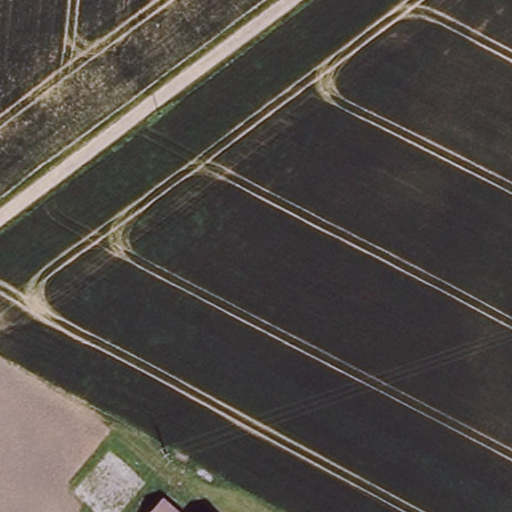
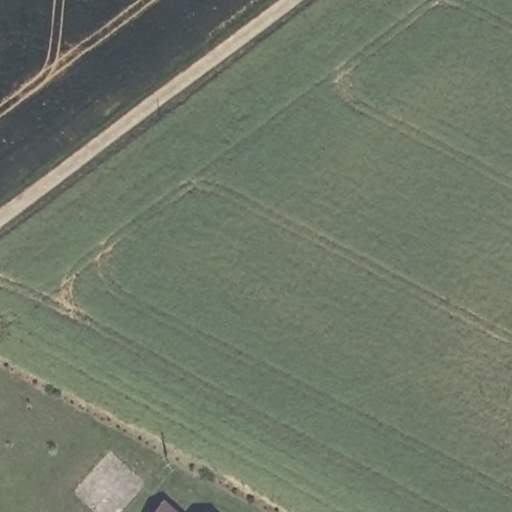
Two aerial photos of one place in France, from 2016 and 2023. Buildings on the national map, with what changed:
unchanged [(206,512),(143,512),(165,487),(207,511),(206,512)]
unchanged [(209,512),(206,512),(207,511),(209,512)]

